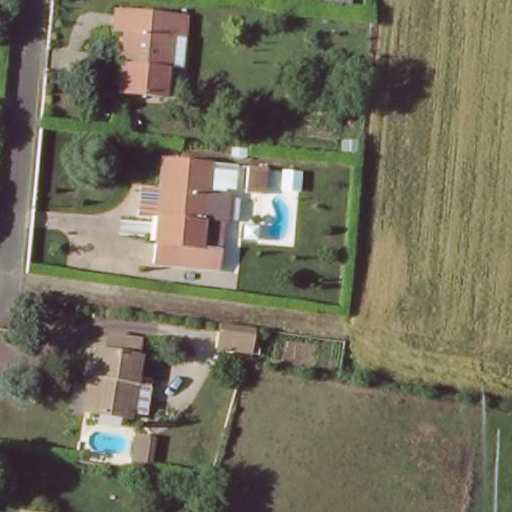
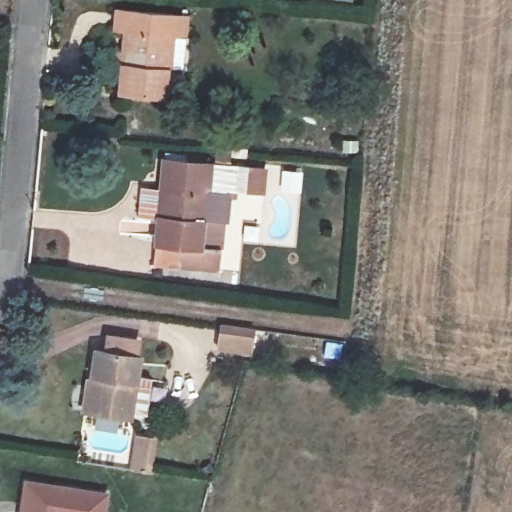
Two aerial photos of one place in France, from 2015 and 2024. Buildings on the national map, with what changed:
unchanged [(188,14),(186,40),(172,39),(166,100),(121,95),(126,33),(114,32),(116,8),(188,14)]
unchanged [(205,166),(198,250),(151,246),(153,220),(133,219),(135,192),(155,194),(158,161),(205,166)]
unchanged [(140,359),(129,420),(84,412),(95,353),(140,359)]
new [(158,440),(152,476),(129,473),(135,437),(158,440)]
new [(110,491),(107,512),(20,512),(25,480),(110,491)]

